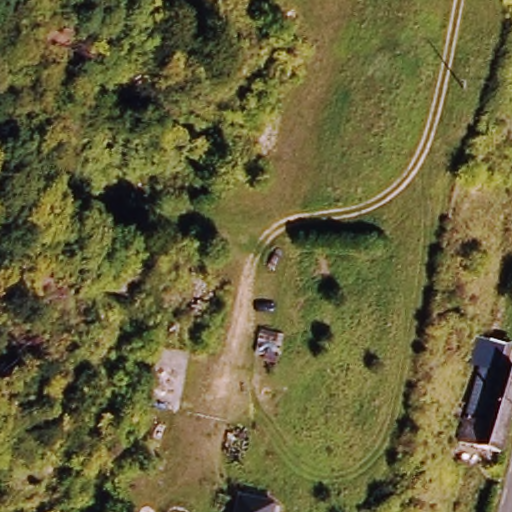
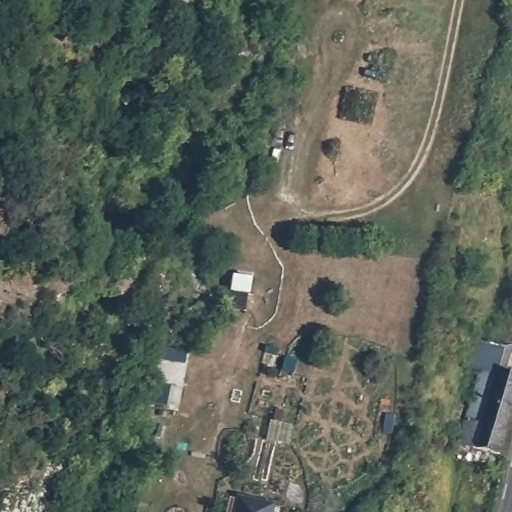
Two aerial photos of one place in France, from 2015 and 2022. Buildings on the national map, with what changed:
unchanged [(499,375),(494,374),(480,427),(465,423),(478,371),(467,368),(473,343),(484,346),(505,352),(499,375)]
unchanged [(512,388),(495,454),(459,445),(465,423),(480,427),(494,374),(499,375),(512,378),(512,388)]
unchanged [(236,501),(275,509),(274,512),(233,512),(236,501)]

